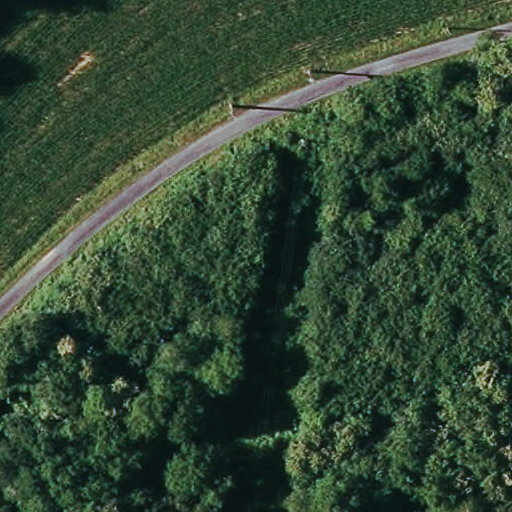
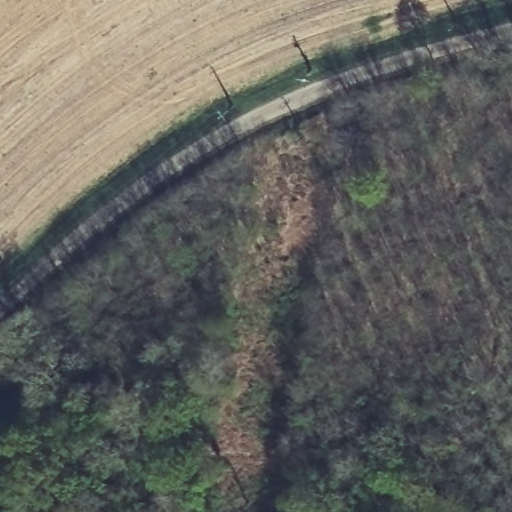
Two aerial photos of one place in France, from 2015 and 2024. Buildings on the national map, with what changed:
unchanged [(459,79),(455,66),(466,64),(470,76),(459,79)]

